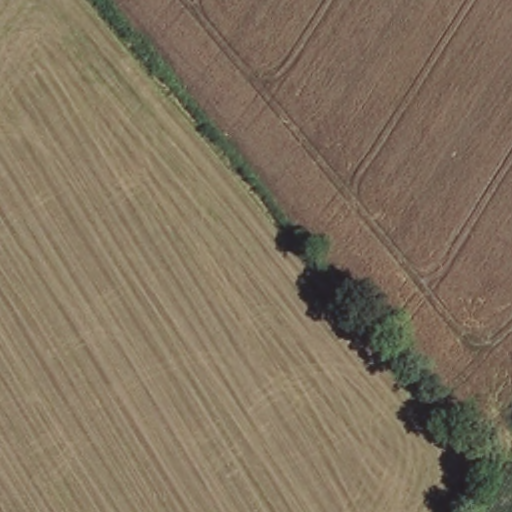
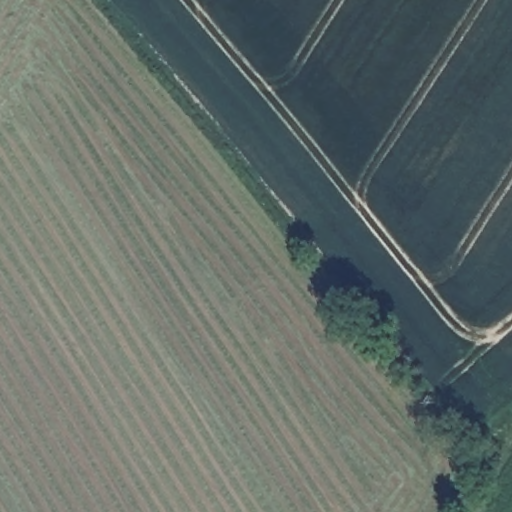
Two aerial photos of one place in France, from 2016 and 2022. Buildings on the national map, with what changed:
[]

